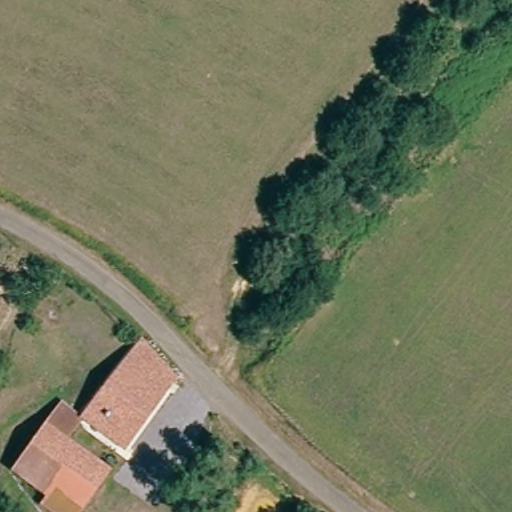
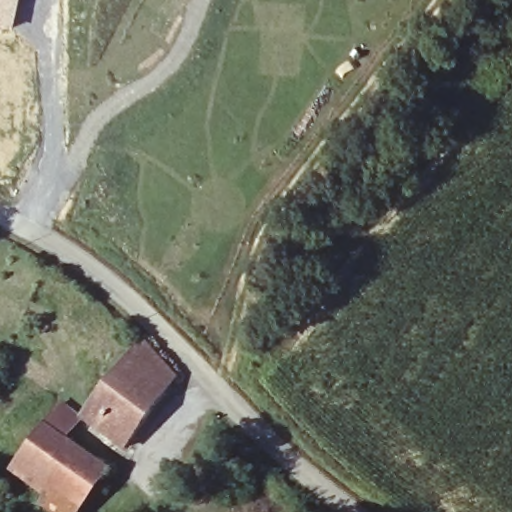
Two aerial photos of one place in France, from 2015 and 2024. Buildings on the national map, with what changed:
new [(0,26),(0,0),(20,0),(14,29),(0,26)]
unchanged [(170,381),(120,451),(79,420),(134,343),(171,380),(170,381)]
unchanged [(82,371),(98,382),(81,407),(64,397),(82,371)]
unchanged [(105,469),(75,512),(42,512),(38,509),(44,499),(10,472),(57,404),(79,420),(67,438),(105,469)]

